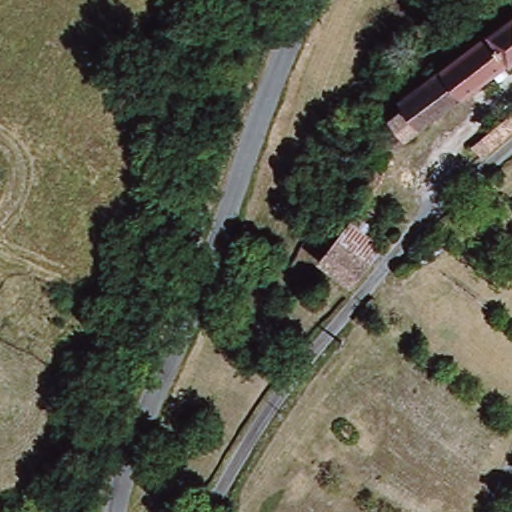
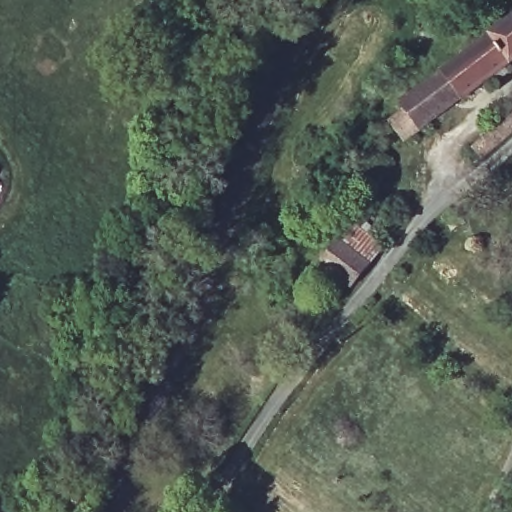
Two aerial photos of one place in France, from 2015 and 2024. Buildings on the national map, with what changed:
unchanged [(410,110),(406,105),(512,25),(512,64),(410,144),(393,125),(410,110)]
unchanged [(512,141),(487,161),(475,147),(512,119),(512,141)]
unchanged [(5,170),(0,179),(0,167),(5,170)]
unchanged [(372,280),(331,253),(347,227),(389,257),(372,280)]

